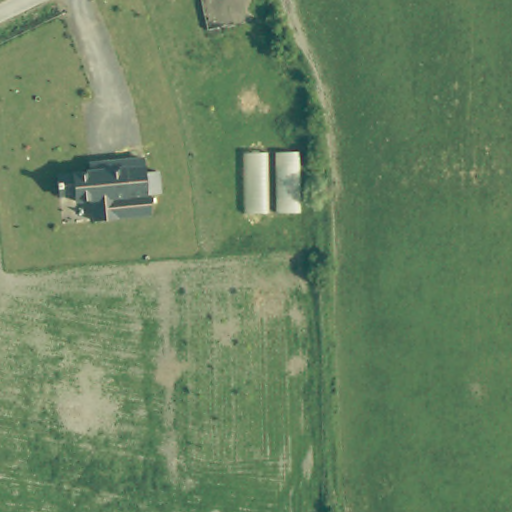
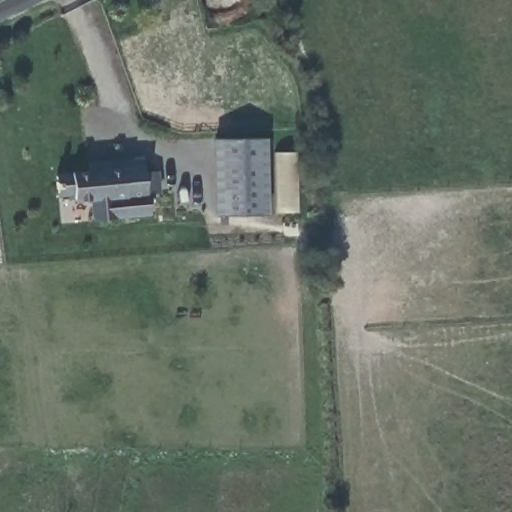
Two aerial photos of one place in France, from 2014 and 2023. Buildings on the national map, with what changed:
new [(215,215),(214,139),(267,137),(269,213),(215,215)]
unchanged [(88,202),(77,203),(74,196),(60,197),(58,173),(77,171),(91,170),(90,161),(143,157),(145,171),(157,170),(160,193),(150,194),(151,214),(90,221),(88,202)]

